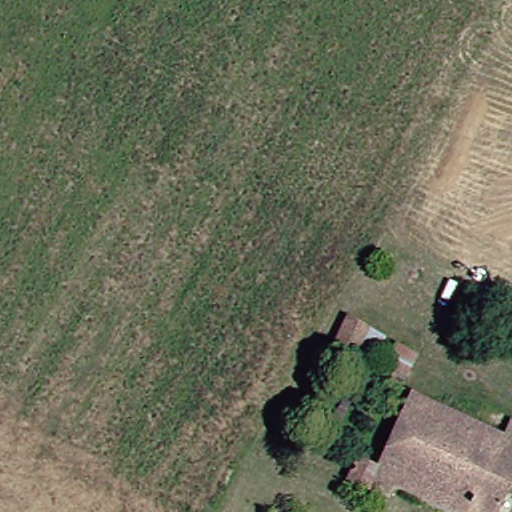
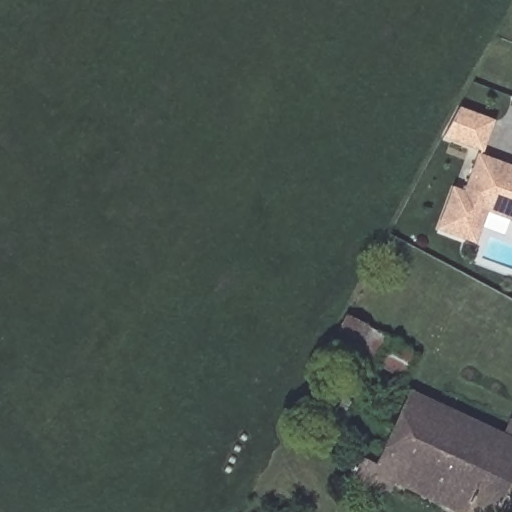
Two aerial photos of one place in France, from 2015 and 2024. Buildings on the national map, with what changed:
new [(459,107),(496,122),(482,151),(442,136),(459,107)]
new [(512,222),(487,212),(475,243),(436,230),(452,187),(463,189),(476,153),(512,167),(512,222)]
unchanged [(412,348),(395,378),(326,343),(339,313),(412,348)]
unchanged [(456,512),(383,478),(378,489),(359,480),(357,485),(340,477),(349,455),(367,463),(399,393),(477,429),(454,481),(488,497),(481,512),(456,512)]
unchanged [(477,429),(512,445),(488,497),(454,481),(477,429)]

